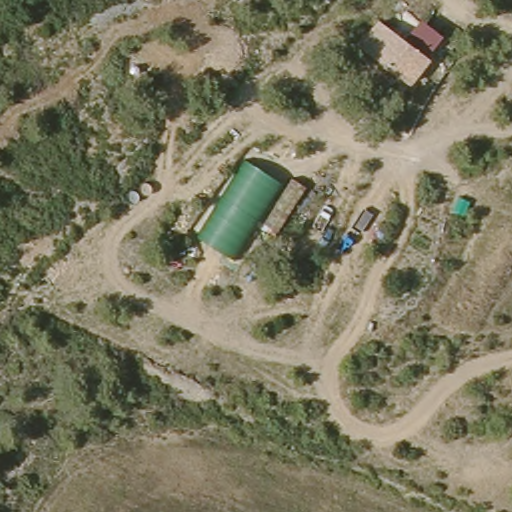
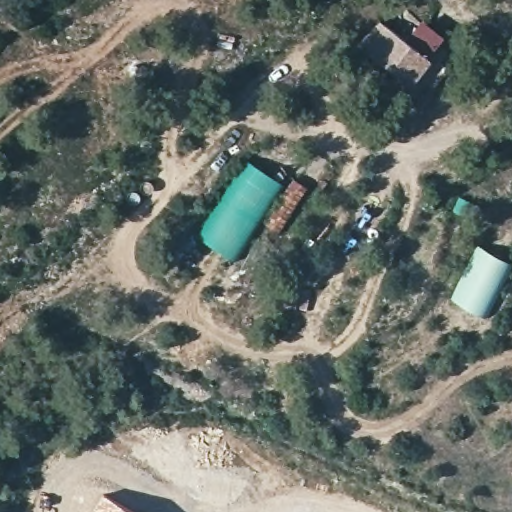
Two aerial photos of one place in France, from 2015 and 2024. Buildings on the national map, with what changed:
unchanged [(414,44),(395,69),(359,41),(379,16),(414,44)]
unchanged [(250,162),(278,181),(230,257),(199,240),(250,162)]
unchanged [(293,179),(306,187),(277,232),(264,223),(293,179)]
new [(512,264),(512,265),(488,316),(450,299),(478,246),(512,264)]
new [(138,512),(90,512),(102,492),(138,512)]

